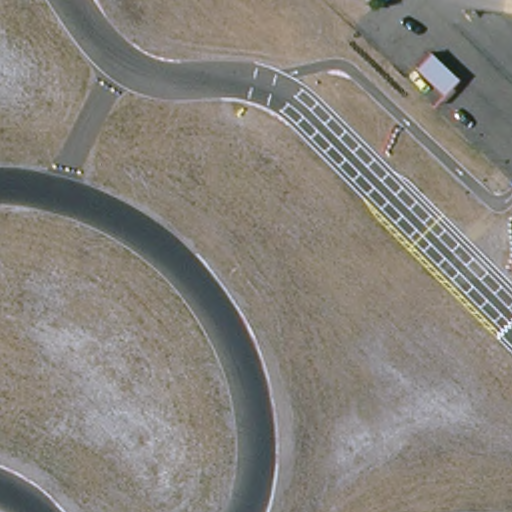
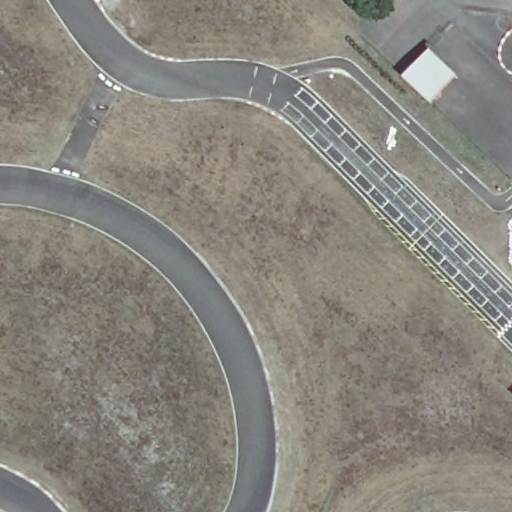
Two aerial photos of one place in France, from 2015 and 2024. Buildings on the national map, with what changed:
unchanged [(417,49),(431,35),(458,61),(444,75),(417,49)]

